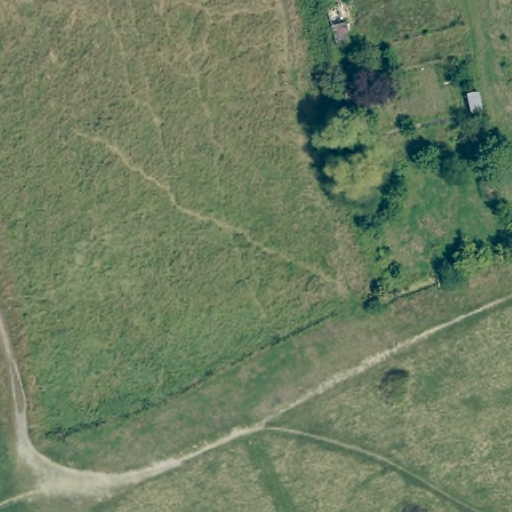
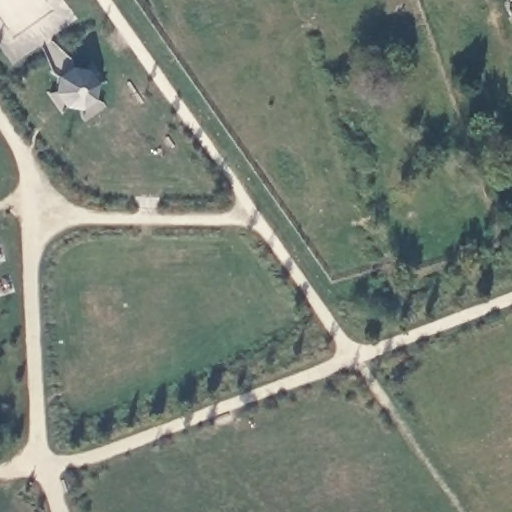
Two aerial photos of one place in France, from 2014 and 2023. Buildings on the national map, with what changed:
new [(64,106),(55,93),(58,75),(71,67),(87,70),(96,83),(94,99),(80,108),(64,106)]

